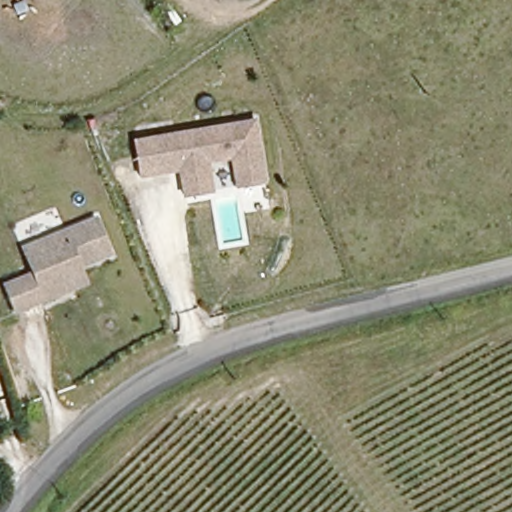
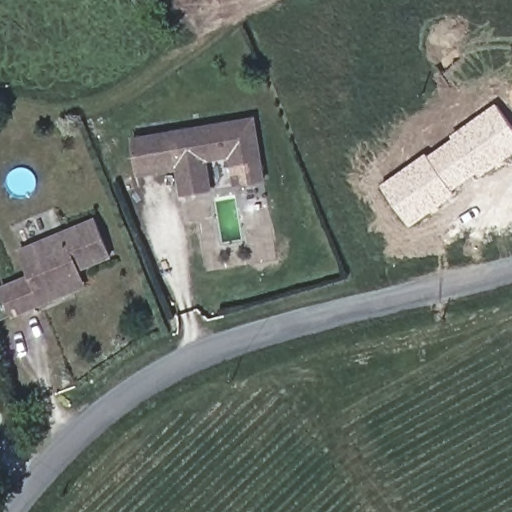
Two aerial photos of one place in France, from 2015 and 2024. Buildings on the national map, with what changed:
new [(429,155),(431,158),(456,139),(454,136),(499,105),(512,123),(512,153),(482,175),(479,171),(453,189),(456,193),(412,224),(385,186),(429,155)]
unchanged [(141,161),(137,136),(258,119),(268,180),(240,185),(235,155),(209,159),(213,188),(186,192),(182,166),(142,171),(141,161)]
unchanged [(64,296),(16,317),(4,289),(32,277),(21,252),(95,220),(111,257),(80,270),(86,286),(64,296)]

